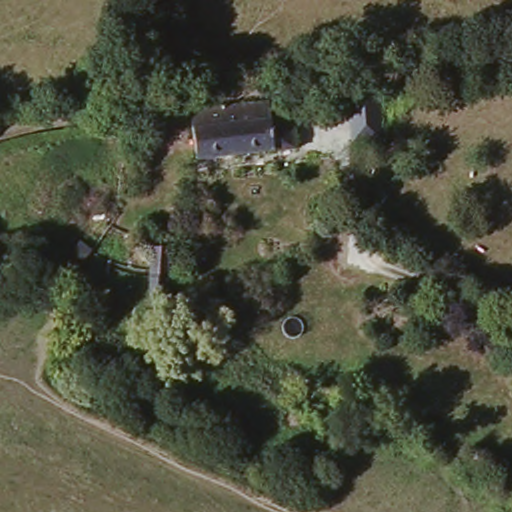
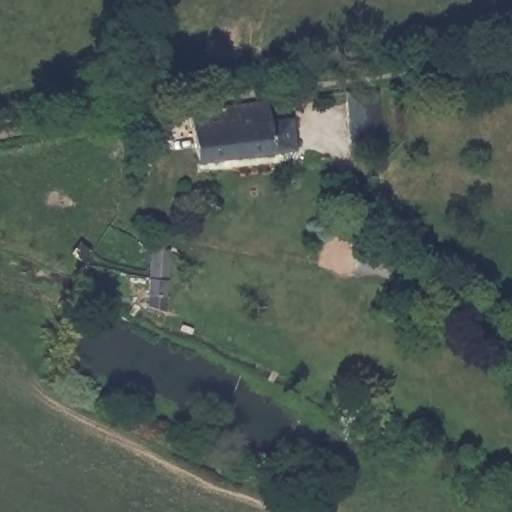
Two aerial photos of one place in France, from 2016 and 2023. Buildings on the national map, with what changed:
unchanged [(360,91),(370,90),(378,90),(382,142),(351,145),(347,92),(360,91)]
unchanged [(269,102),(270,121),(291,120),(295,151),(197,161),(190,111),(269,102)]
unchanged [(152,244),(169,245),(164,307),(147,301),(152,244)]

